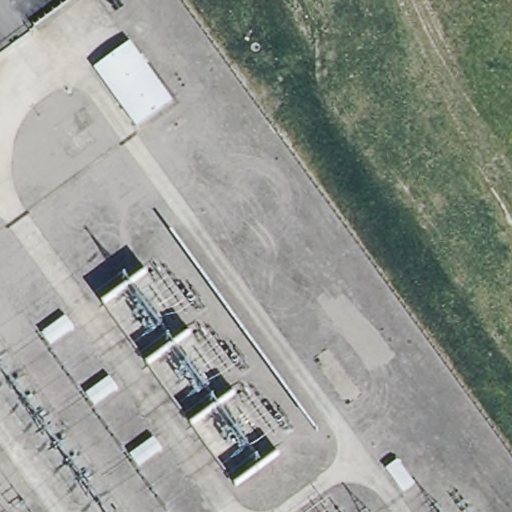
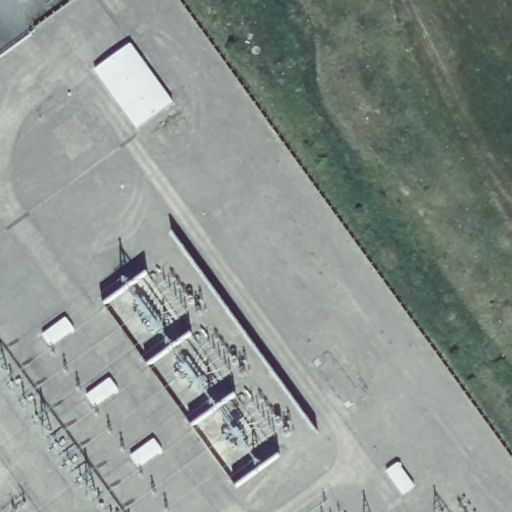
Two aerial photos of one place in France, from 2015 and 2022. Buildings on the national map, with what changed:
unchanged [(130,44),(172,102),(137,128),(95,69),(130,44)]

